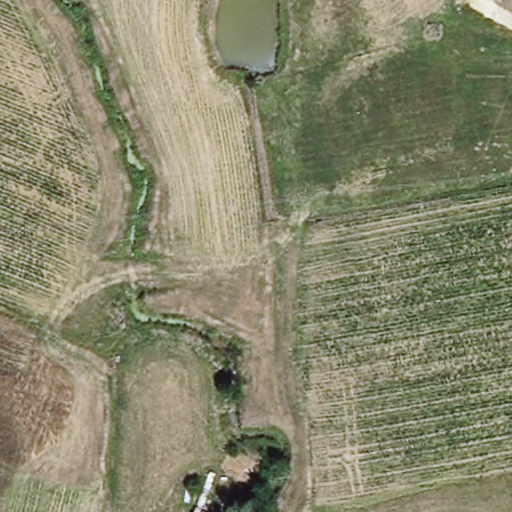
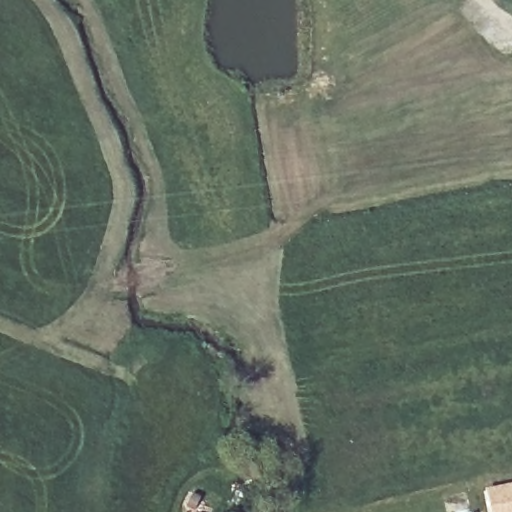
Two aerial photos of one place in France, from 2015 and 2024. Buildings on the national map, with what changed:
new [(512,482),(512,512),(488,512),(483,488),(512,482)]

